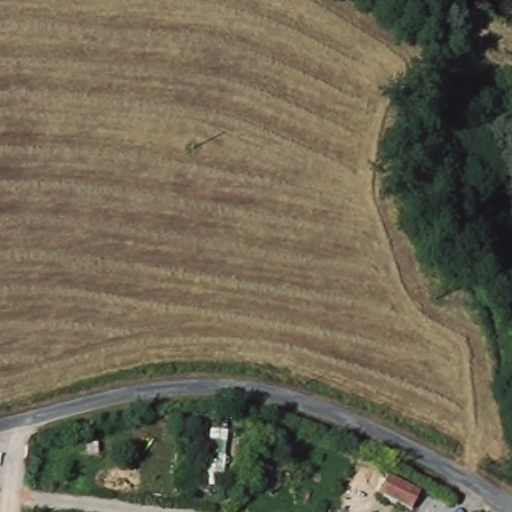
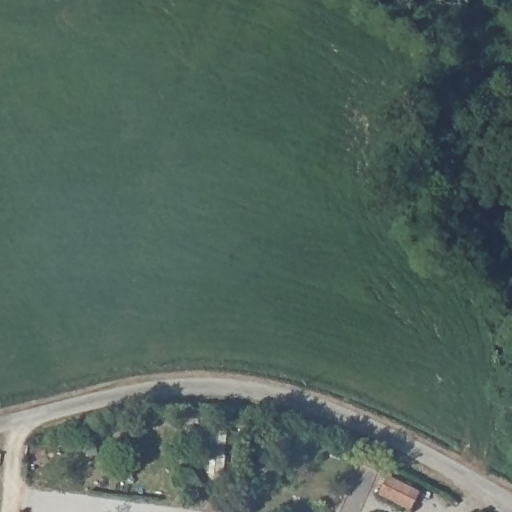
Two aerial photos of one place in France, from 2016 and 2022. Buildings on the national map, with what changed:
unchanged [(411,512),(408,512),(381,495),(392,477),(422,496),(411,512)]

